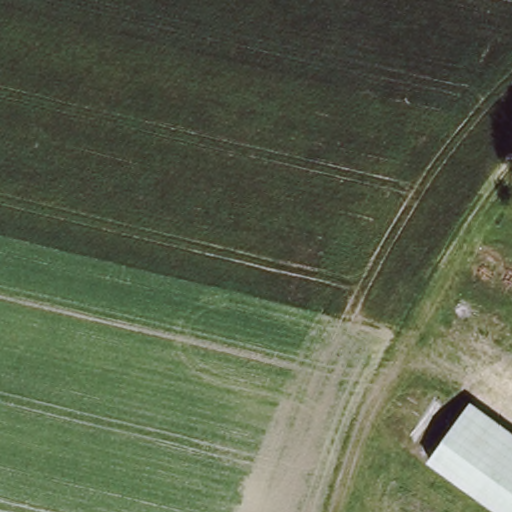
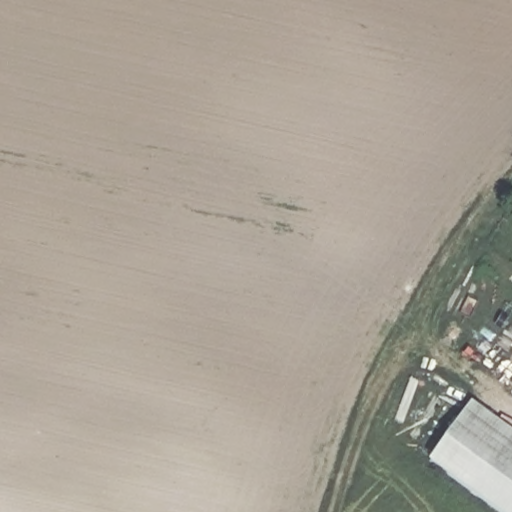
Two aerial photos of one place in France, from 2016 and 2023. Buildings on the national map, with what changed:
unchanged [(478,408),(512,432),(512,512),(503,512),(438,467),(478,408)]

